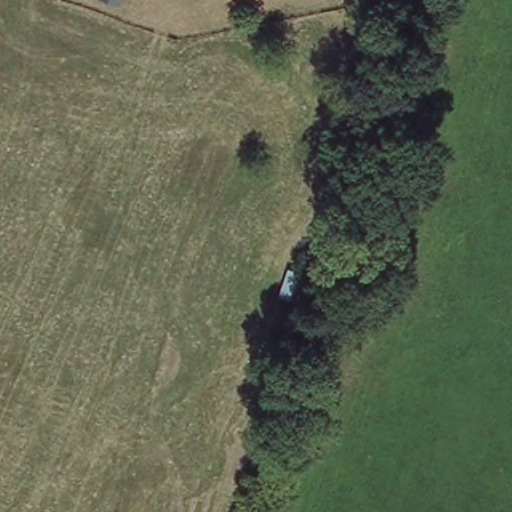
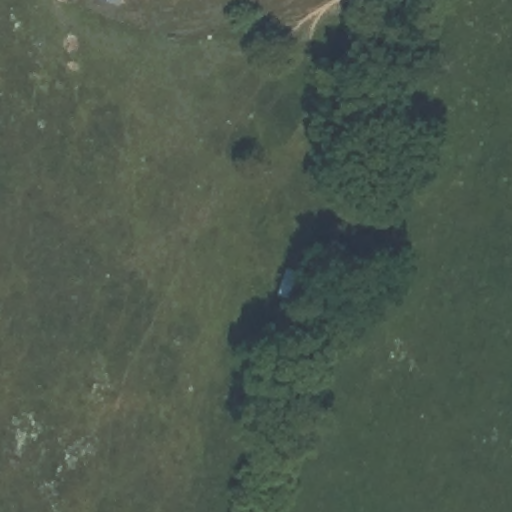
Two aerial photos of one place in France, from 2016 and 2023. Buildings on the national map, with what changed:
unchanged [(112,4),(102,0),(114,0),(112,4)]

